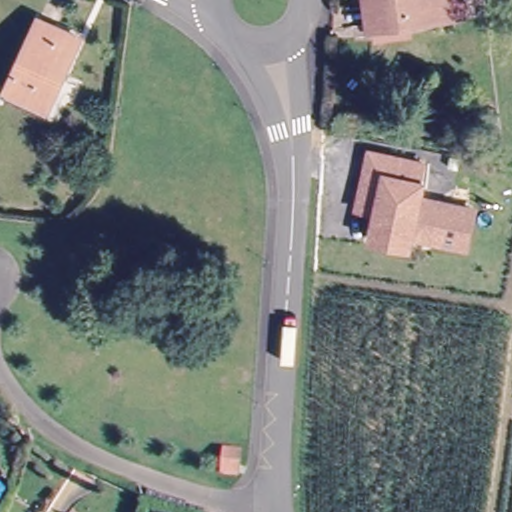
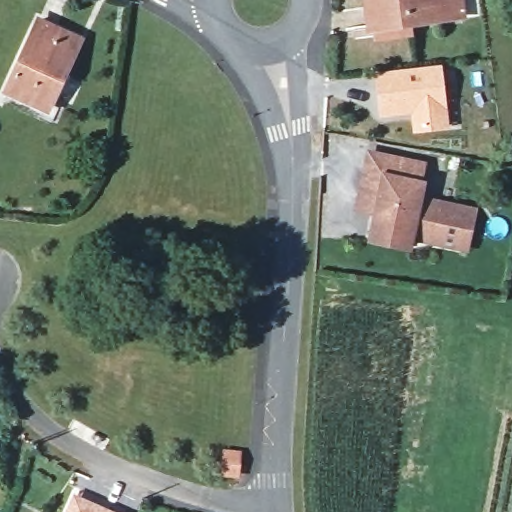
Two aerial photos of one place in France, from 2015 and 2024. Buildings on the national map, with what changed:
unchanged [(371,24),(366,24),(363,0),(456,0),(457,12),(420,17),(405,19),(406,29),(372,34),(371,24)]
unchanged [(47,109),(6,90),(40,20),(80,39),(47,109)]
new [(442,64),(450,128),(412,133),(410,113),(380,116),(373,72),(442,64)]
unchanged [(418,179),(421,179),(418,194),(442,200),(437,222),(413,216),(410,232),(407,241),(370,233),(375,209),(356,204),(365,168),(369,148),(422,160),(418,179)]
unchanged [(471,207),(463,244),(410,232),(413,216),(437,222),(442,200),(471,207)]
unchanged [(237,475),(224,474),(225,452),(239,453),(237,475)]
new [(119,512),(64,512),(73,491),(119,512)]

